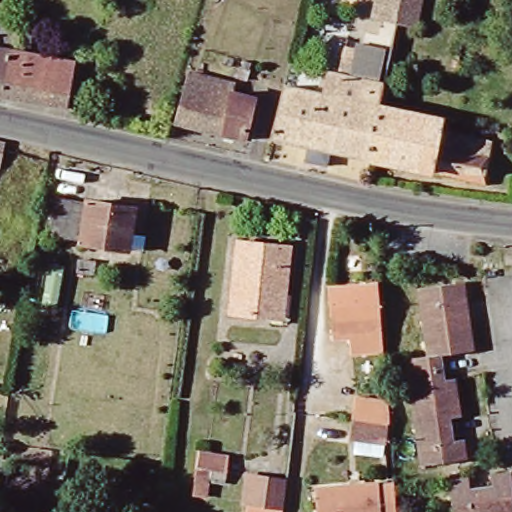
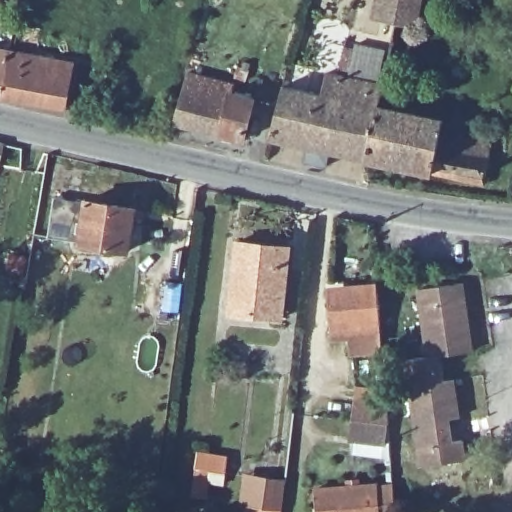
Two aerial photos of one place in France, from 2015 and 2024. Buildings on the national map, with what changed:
unchanged [(394,0),(405,0),(398,33),(388,30),(394,0)]
unchanged [(405,0),(424,0),(416,42),(397,38),(398,33),(405,0)]
unchanged [(83,63),(74,108),(0,97),(0,51),(83,63)]
unchanged [(352,53),(388,63),(382,90),(345,81),(352,53)]
unchanged [(249,144),(178,125),(186,96),(192,76),(237,89),(235,99),(258,105),(249,144)]
unchanged [(345,81),(382,90),(379,108),(368,160),(332,151),(307,145),(269,136),(282,87),(320,97),(324,76),(345,81)]
unchanged [(445,122),(442,132),(496,145),(486,187),(368,160),(379,108),(445,122)]
unchanged [(7,147),(2,173),(0,172),(0,146),(7,147)]
unchanged [(135,209),(129,250),(77,242),(79,237),(51,233),(56,198),(84,203),(84,201),(135,209)]
unchanged [(280,319),(230,313),(238,246),(288,253),(280,319)]
unchanged [(445,352),(447,379),(458,378),(463,418),(454,419),(457,442),(467,441),(470,457),(421,463),(407,357),(429,354),(422,287),(466,284),(472,349),(445,352)]
unchanged [(347,357),(346,339),(329,340),(327,322),(326,296),(378,292),(381,320),(382,337),(385,355),(347,357)]
unchanged [(352,434),(355,418),(357,398),(388,400),(390,421),(386,421),(383,439),(352,434)]
unchanged [(197,497),(202,452),(232,455),(230,473),(215,471),(211,499),(197,497)]
unchanged [(285,512),(252,506),(246,505),(250,481),(255,482),(288,486),(285,512)]
unchanged [(315,489),(381,484),(381,487),(395,486),(397,512),(316,512),(315,489)]
unchanged [(450,494),(472,491),(473,501),(495,498),(494,489),(512,487),(512,512),(452,512),(450,494)]

